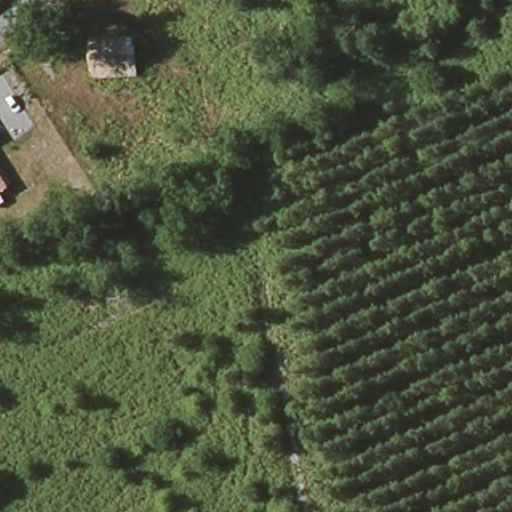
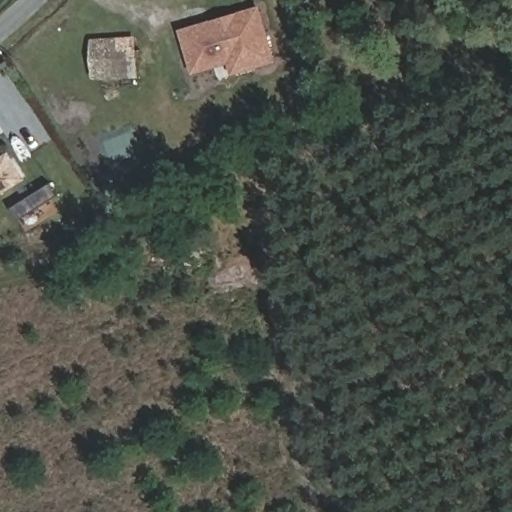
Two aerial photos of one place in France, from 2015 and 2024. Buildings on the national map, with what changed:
new [(214,23),(215,27),(236,21),(235,15),(257,9),(272,60),(252,66),(238,57),(194,70),(182,32),(214,23)]
unchanged [(89,42),(137,38),(139,72),(91,75),(89,42)]
unchanged [(0,196),(0,171),(10,189),(0,196)]

